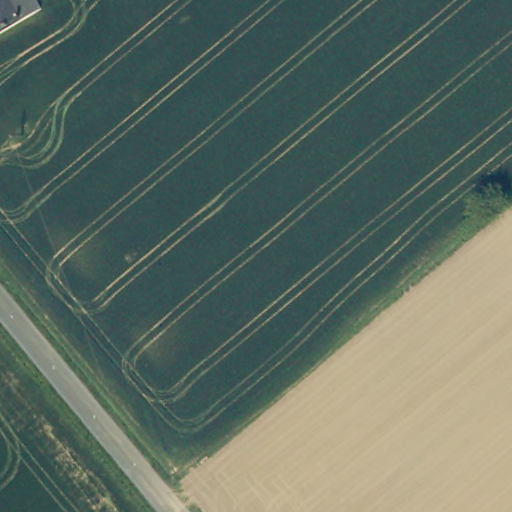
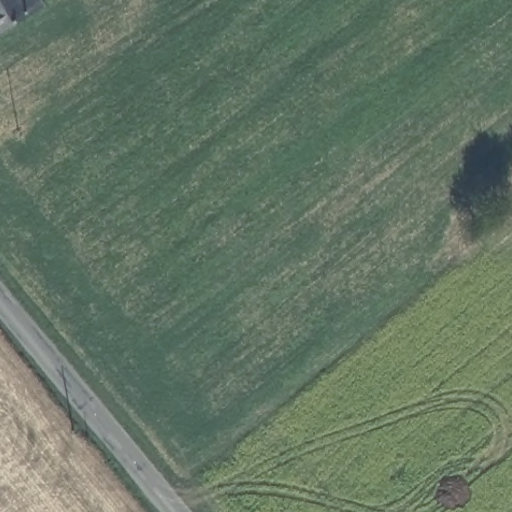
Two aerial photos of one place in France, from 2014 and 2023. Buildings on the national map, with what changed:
unchanged [(0,30),(0,0),(18,0),(27,12),(0,30)]

